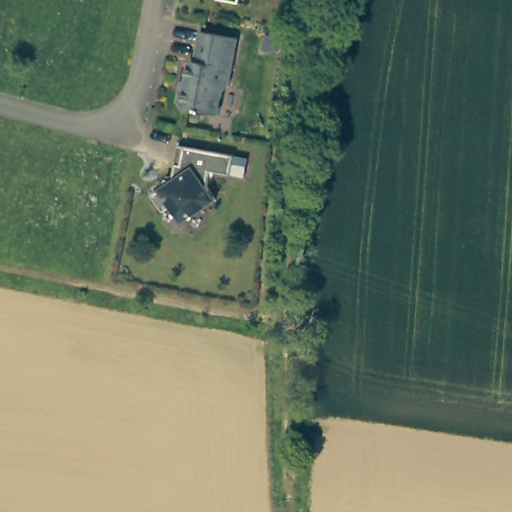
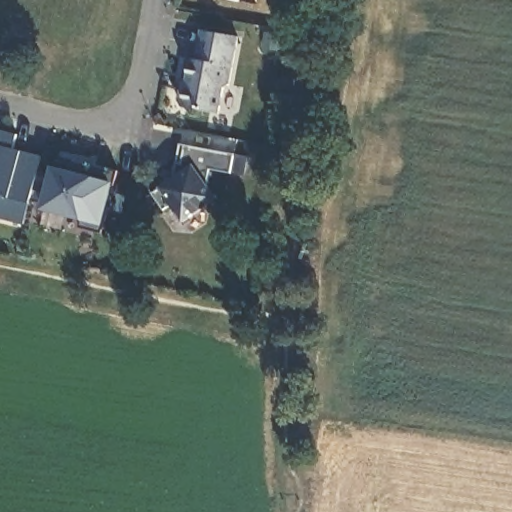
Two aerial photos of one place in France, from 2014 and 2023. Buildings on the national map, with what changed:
unchanged [(226,0),(234,0),(234,2),(226,0)]
unchanged [(223,80),(217,84),(213,109),(177,102),(173,96),(177,74),(181,75),(186,54),(190,55),(196,25),(232,32),(223,80)]
unchanged [(280,36),(277,50),(263,47),(266,34),(280,36)]
new [(13,149),(40,156),(29,202),(23,225),(0,218),(0,131),(17,135),(13,149)]
unchanged [(226,169),(205,165),(202,181),(211,194),(178,216),(167,200),(159,206),(147,189),(159,180),(161,172),(168,174),(171,157),(176,158),(180,140),(230,149),(226,169)]
unchanged [(230,150),(243,152),(239,171),(227,168),(230,150)]
new [(56,162),(75,166),(76,162),(118,171),(114,183),(103,227),(103,234),(78,227),(79,220),(41,210),(54,167),(56,162)]

